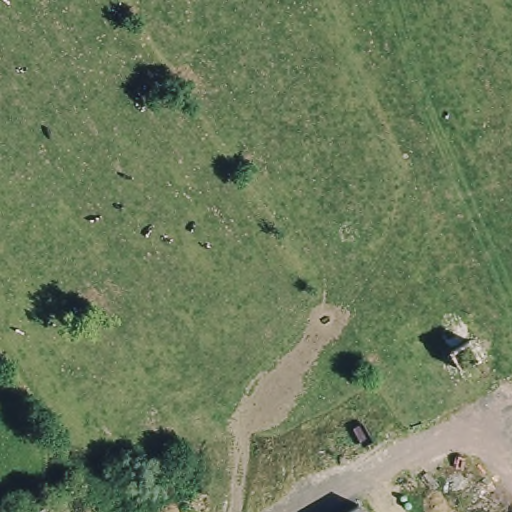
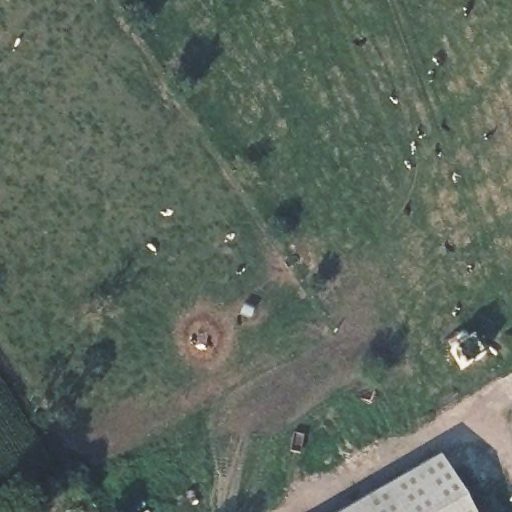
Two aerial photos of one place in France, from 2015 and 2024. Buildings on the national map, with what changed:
new [(364,495),(442,449),(480,512),(336,512),(364,495)]
demolished [(358,504),(363,512),(344,512),(358,504)]

